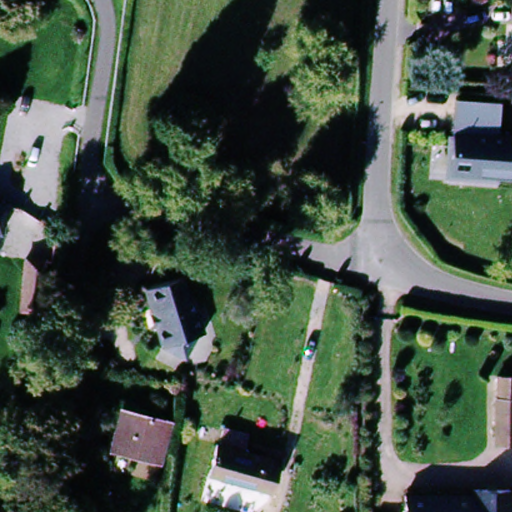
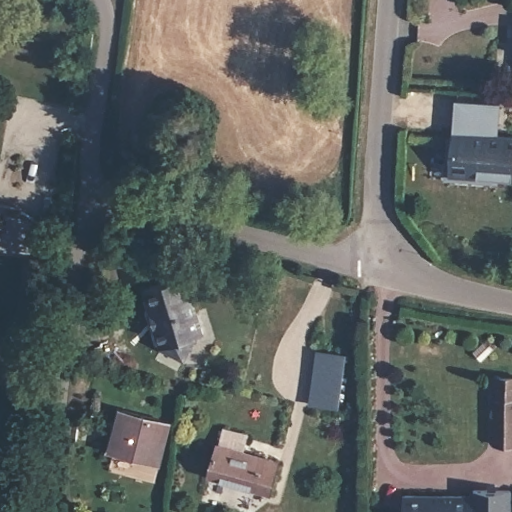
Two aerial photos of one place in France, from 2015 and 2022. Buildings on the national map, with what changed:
unchanged [(445,177),(450,102),(493,105),(500,105),(497,136),(512,137),(512,181),(445,177)]
unchanged [(9,239),(0,238),(0,206),(15,209),(9,239)]
unchanged [(195,336),(187,359),(162,348),(140,287),(182,275),(205,333),(195,336)]
new [(348,354),(340,408),(309,403),(317,350),(348,354)]
unchanged [(493,447),(493,382),(512,383),(512,448),(493,447)]
unchanged [(113,454),(122,411),(165,418),(157,463),(113,454)]
unchanged [(248,452),(260,456),(259,464),(274,468),(267,498),(207,479),(215,451),(219,452),(223,432),(242,437),(238,458),(246,460),(248,452)]
unchanged [(512,495),(511,512),(401,512),(402,499),(470,500),(470,495),(512,495)]

